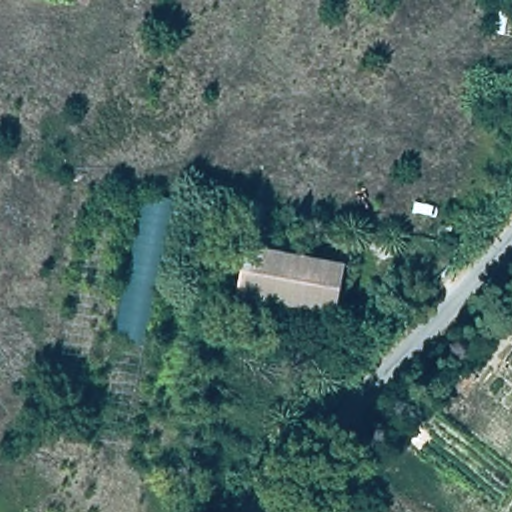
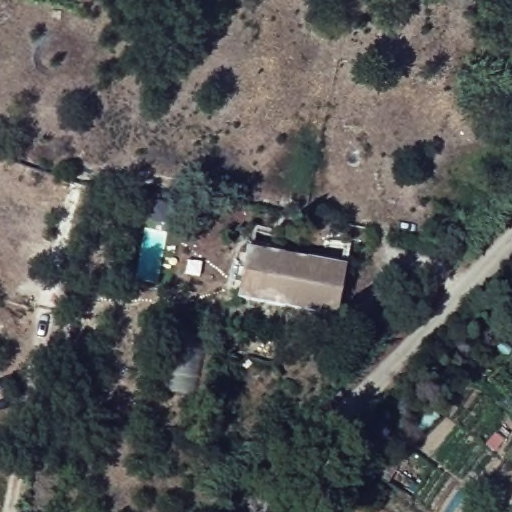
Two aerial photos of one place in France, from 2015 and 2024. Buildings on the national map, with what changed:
unchanged [(248,251),(346,270),(334,315),(238,295),(248,251)]

